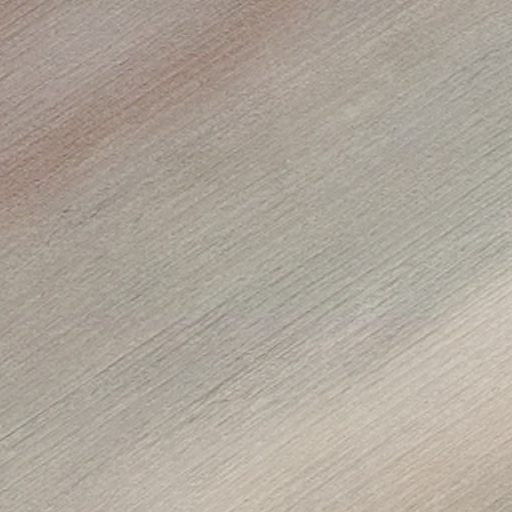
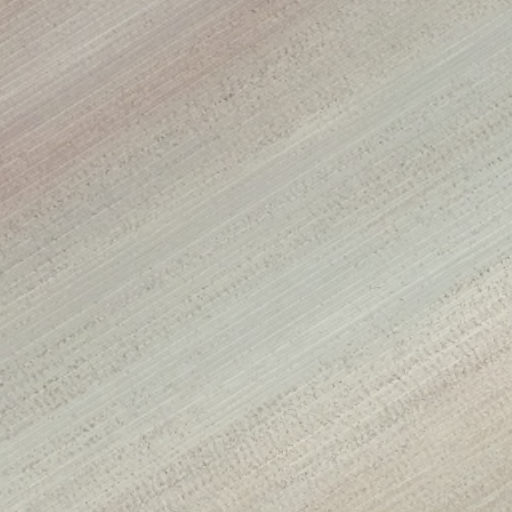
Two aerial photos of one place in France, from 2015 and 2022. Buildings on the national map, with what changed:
[]

